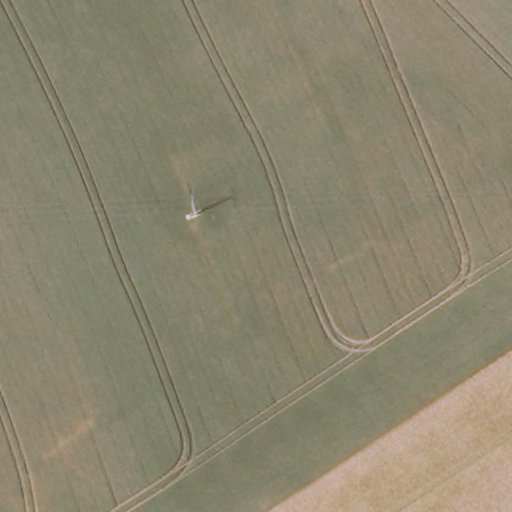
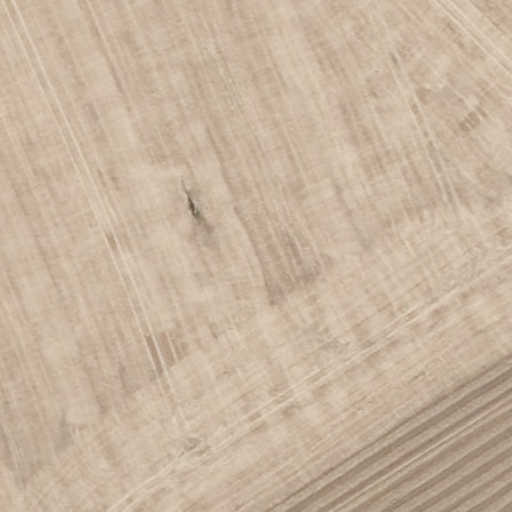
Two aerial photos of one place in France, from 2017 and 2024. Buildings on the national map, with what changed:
[]

